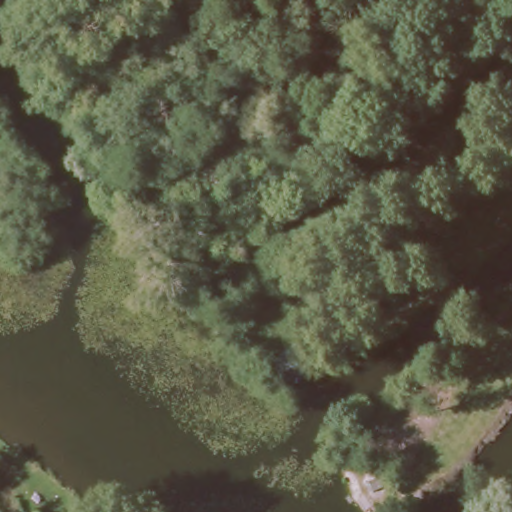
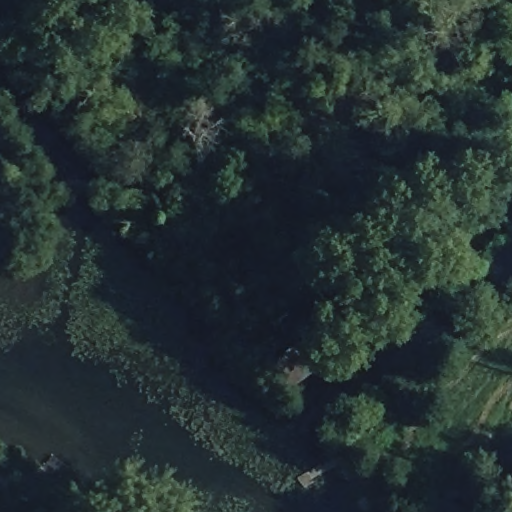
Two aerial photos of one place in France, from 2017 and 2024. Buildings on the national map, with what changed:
unchanged [(271,362),(307,330),(329,356),(288,388),(271,362)]

